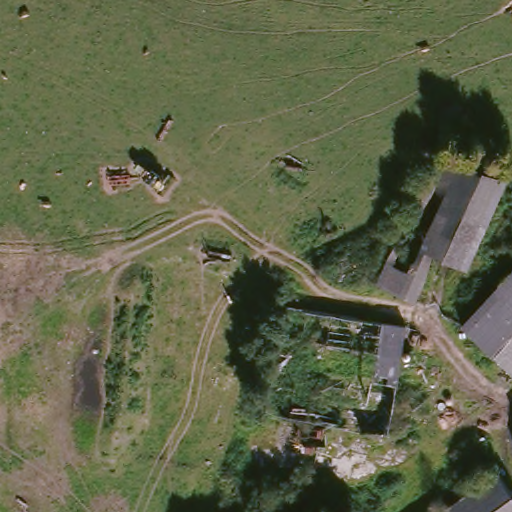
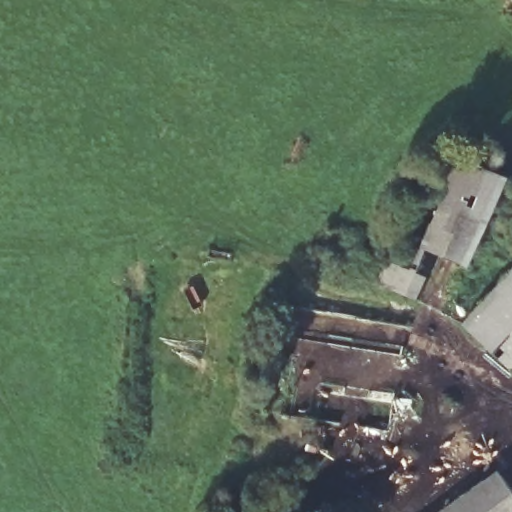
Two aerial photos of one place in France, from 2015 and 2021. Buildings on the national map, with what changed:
unchanged [(371,286),(431,150),(510,181),(466,268),(434,259),(416,301),(371,286)]
unchanged [(512,265),(512,380),(458,330),(512,265)]
unchanged [(509,512),(453,512),(489,487),(509,512)]

